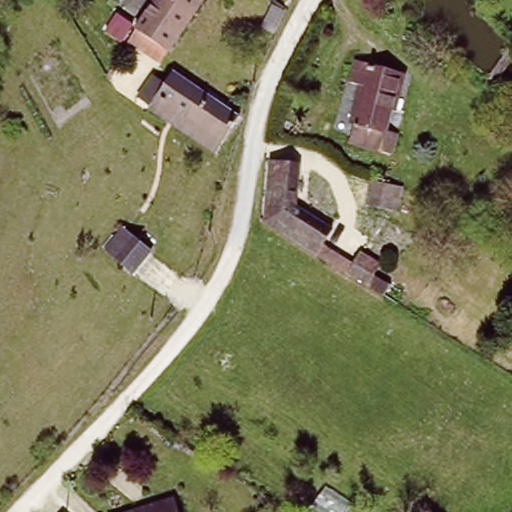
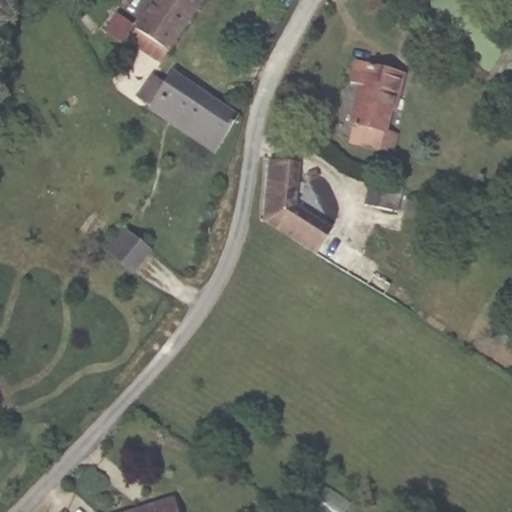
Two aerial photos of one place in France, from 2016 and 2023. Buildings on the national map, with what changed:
unchanged [(135,32),(158,0),(208,0),(167,55),(158,67),(125,45),(135,32)]
unchanged [(387,147),(361,141),(364,125),(356,123),(364,87),(357,85),(362,66),(402,76),(387,147)]
unchanged [(245,117),(215,154),(141,100),(161,76),(175,85),(184,72),(245,117)]
unchanged [(357,270),(366,257),(385,271),(377,282),(395,294),(387,306),(346,280),(266,231),(269,165),(295,166),(294,180),(299,180),(299,210),(336,233),(333,240),(327,248),(357,270)]
unchanged [(396,189),(389,217),(364,210),(371,186),(396,189)]
unchanged [(172,500),(175,512),(125,512),(172,500)]
unchanged [(56,508),(61,512),(52,512),(56,508)]

